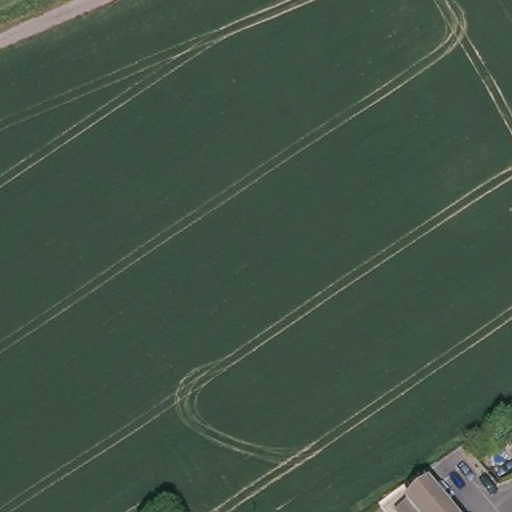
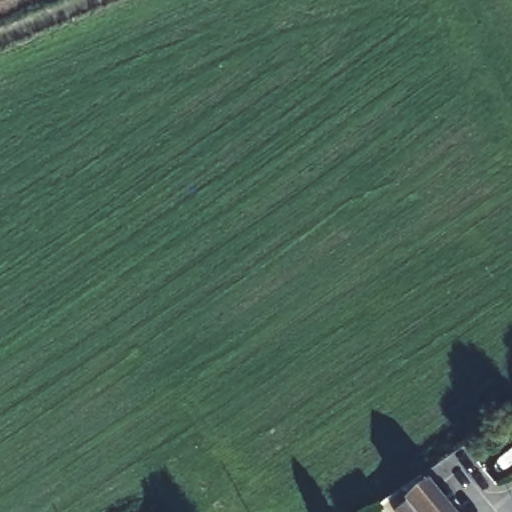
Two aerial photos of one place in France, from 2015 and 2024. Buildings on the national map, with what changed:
unchanged [(445,512),(399,512),(404,508),(402,506),(425,487),(445,512)]

